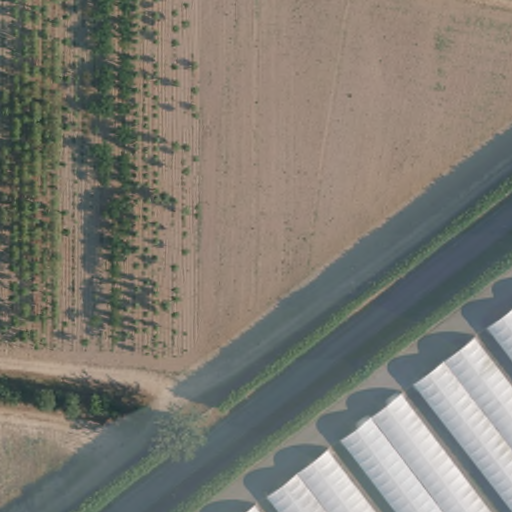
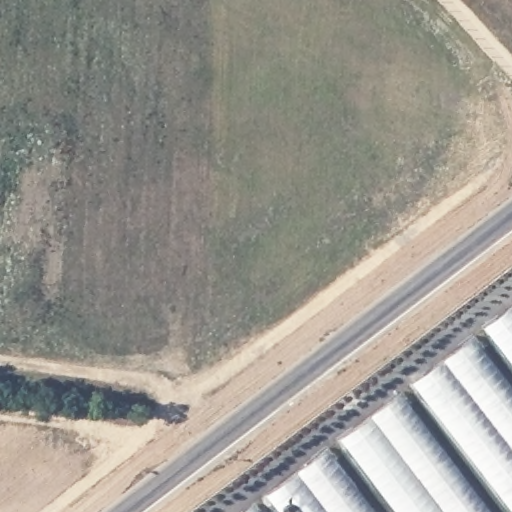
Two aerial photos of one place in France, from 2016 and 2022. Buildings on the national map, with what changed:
unchanged [(512,364),(485,329),(512,308),(512,364)]
unchanged [(512,383),(512,512),(510,512),(412,385),(475,336),(512,383)]
unchanged [(493,512),(391,512),(337,442),(401,393),(493,512)]
unchanged [(378,512),(276,512),(265,497),(328,448),(378,512)]
unchanged [(262,512),(244,512),(255,504),(262,512)]

